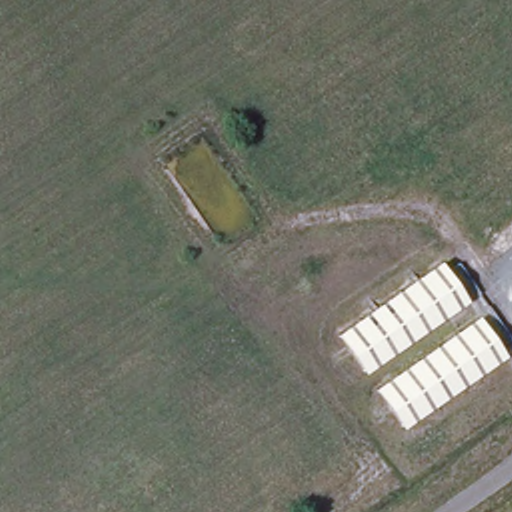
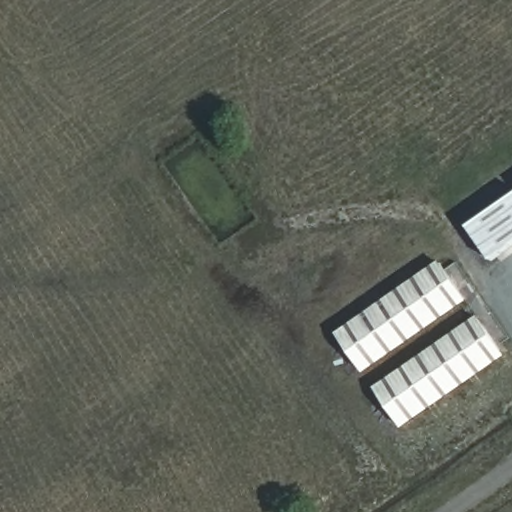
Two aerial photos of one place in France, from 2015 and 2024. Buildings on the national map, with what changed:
new [(468,228),(512,196),(512,246),(490,260),(468,228)]
unchanged [(438,260),(466,300),(358,375),(331,335),(438,260)]
unchanged [(477,317),(504,357),(396,431),(369,391),(477,317)]

